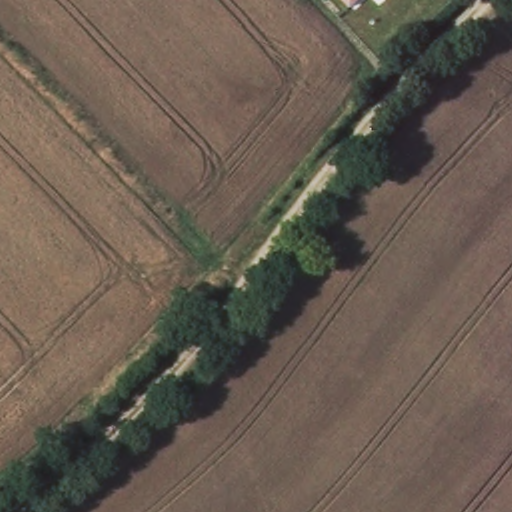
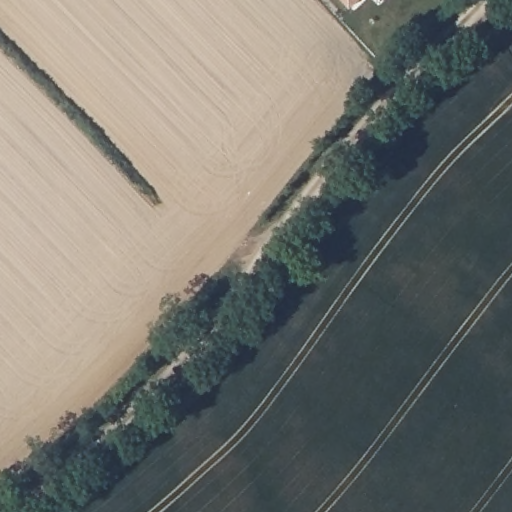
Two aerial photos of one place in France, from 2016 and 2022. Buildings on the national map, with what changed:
unchanged [(337,0),(359,0),(347,11),(337,0)]

